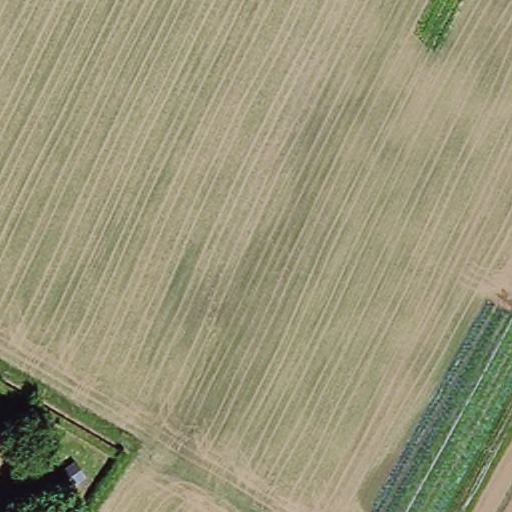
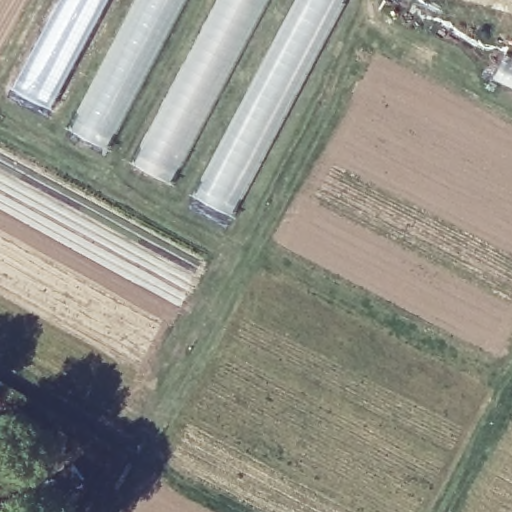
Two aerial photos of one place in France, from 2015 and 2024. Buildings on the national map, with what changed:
new [(59,0),(110,0),(50,112),(10,92),(59,0)]
new [(112,42),(134,0),(187,0),(177,20),(106,152),(66,129),(112,42)]
new [(210,11),(215,0),(269,0),(211,112),(170,184),(131,163),(210,11)]
new [(299,0),(302,0),(307,3),(308,0),(343,0),(239,199),(232,196),(225,211),(197,196),(299,0)]
new [(506,51),(512,54),(512,89),(491,79),(506,51)]

